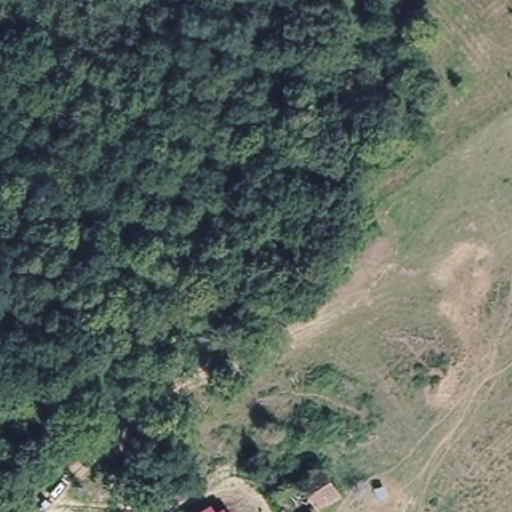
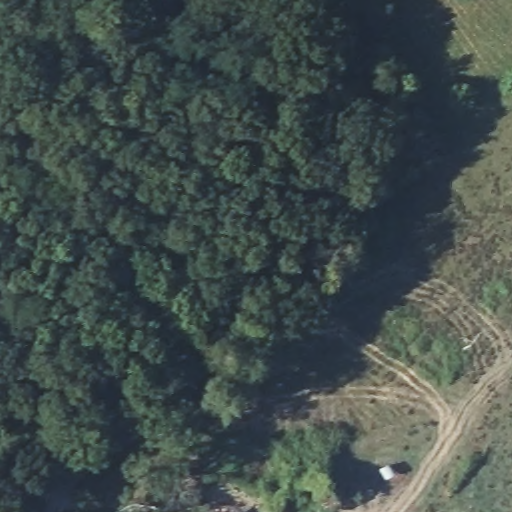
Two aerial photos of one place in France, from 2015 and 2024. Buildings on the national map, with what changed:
unchanged [(338,499),(321,512),(270,512),(267,508),(317,470),(330,486),(338,499)]
unchanged [(217,512),(199,512),(212,505),(217,512)]
unchanged [(224,509),(228,512),(219,512),(224,509)]

